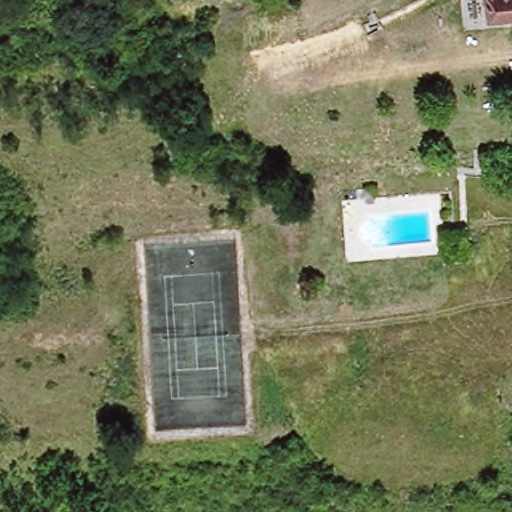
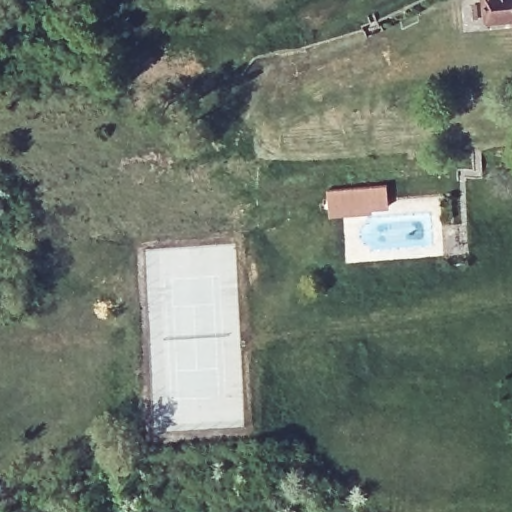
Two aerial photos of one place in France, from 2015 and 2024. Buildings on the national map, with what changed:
unchanged [(482,28),(478,0),(512,0),(512,23),(482,28)]
new [(388,187),(390,209),(369,210),(332,213),(331,202),(330,191),(343,190),(368,188),(388,187)]

